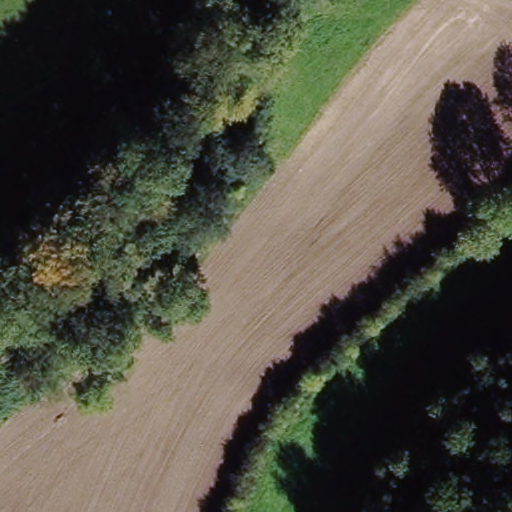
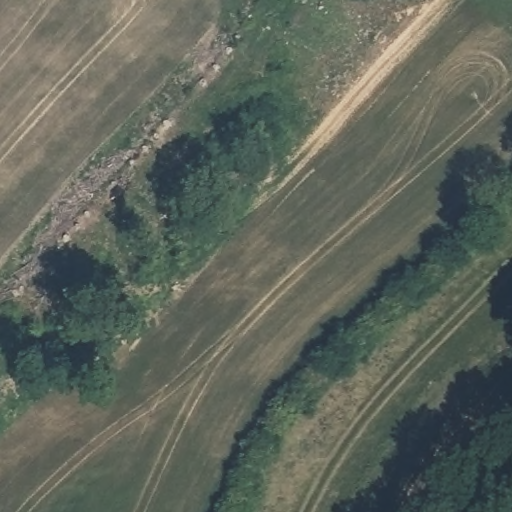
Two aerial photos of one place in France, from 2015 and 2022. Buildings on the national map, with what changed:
unchanged [(32,377),(62,342),(81,358),(50,393),(32,377)]

